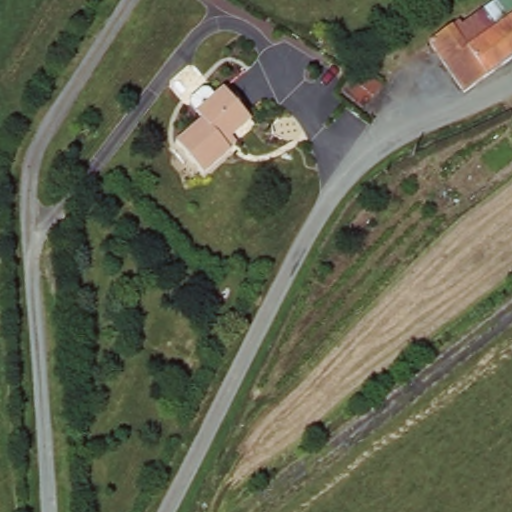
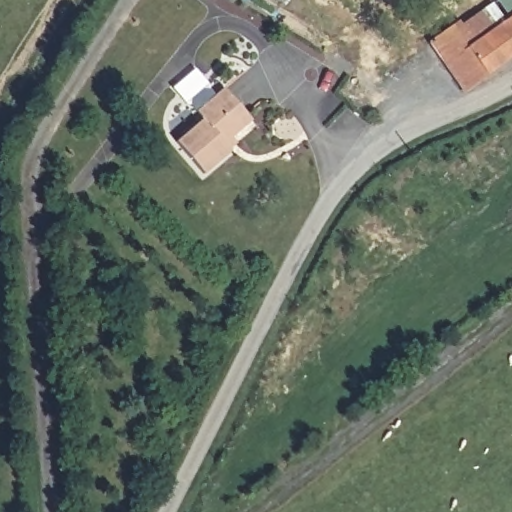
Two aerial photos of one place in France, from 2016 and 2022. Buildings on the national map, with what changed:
unchanged [(468,90),(435,40),(454,26),(456,29),(482,10),(488,20),(494,15),(491,9),(503,0),(512,0),(512,56),(468,90)]
unchanged [(201,82),(207,83),(214,89),(222,80),(252,110),(227,135),(234,142),(209,169),(178,139),(205,112),(191,99),(191,92),(201,82)]

